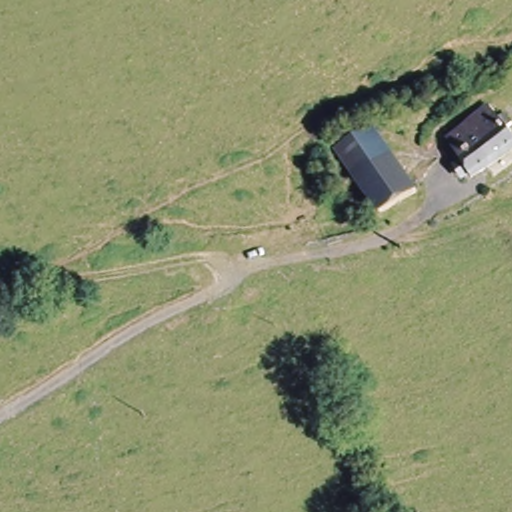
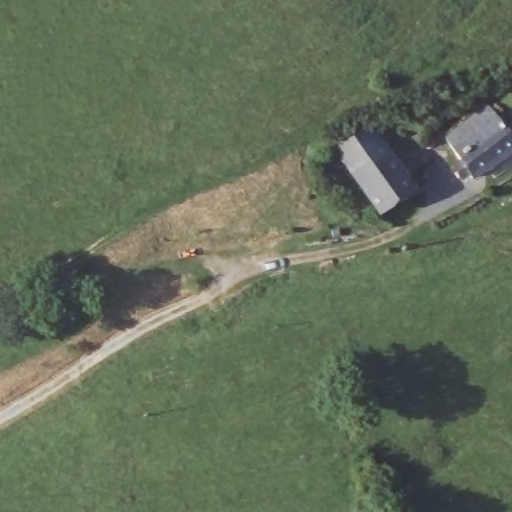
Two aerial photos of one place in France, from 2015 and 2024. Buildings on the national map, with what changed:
unchanged [(512,123),(512,132),(507,136),(512,143),(512,155),(473,185),(444,146),(475,123),(489,114),(497,129),(510,119),(512,123)]
unchanged [(333,141),(368,119),(416,189),(382,213),(333,141)]

